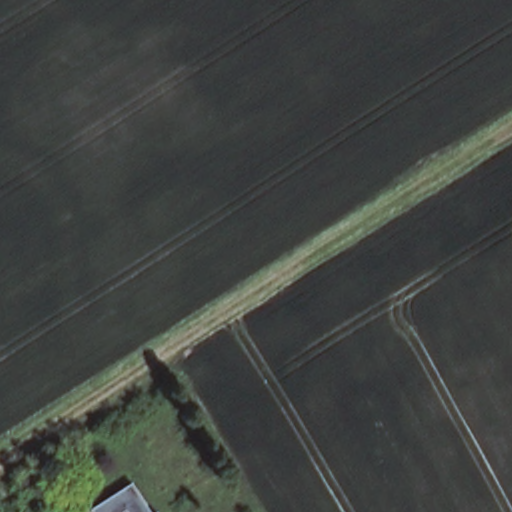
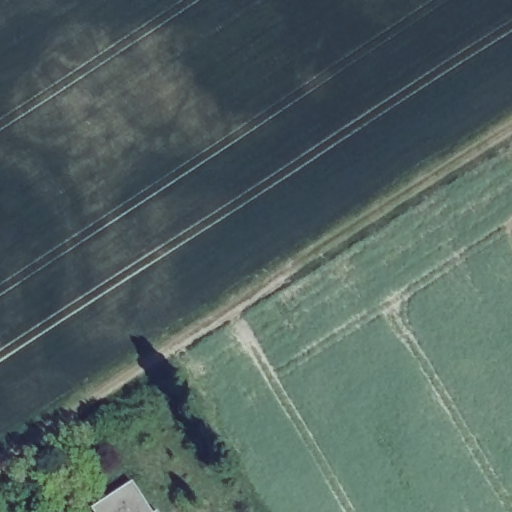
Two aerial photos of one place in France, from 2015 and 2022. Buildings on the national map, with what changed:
unchanged [(94,509),(136,483),(155,512),(96,512),(94,509)]

